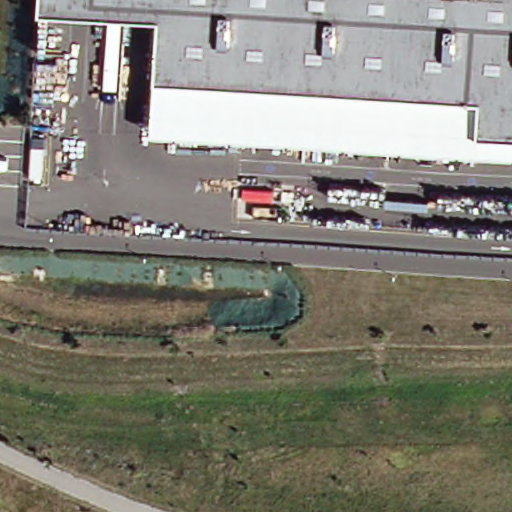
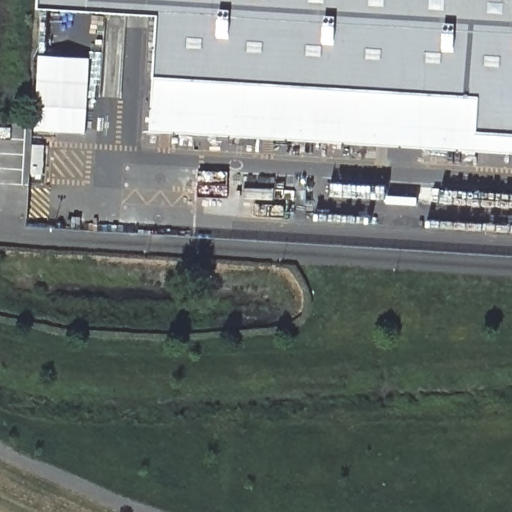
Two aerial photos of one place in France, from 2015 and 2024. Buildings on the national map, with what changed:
unchanged [(159,16),(40,9),(41,0),(512,0),(512,154),(152,131),(159,16)]
new [(85,135),(35,133),(39,55),(90,57),(85,135)]

